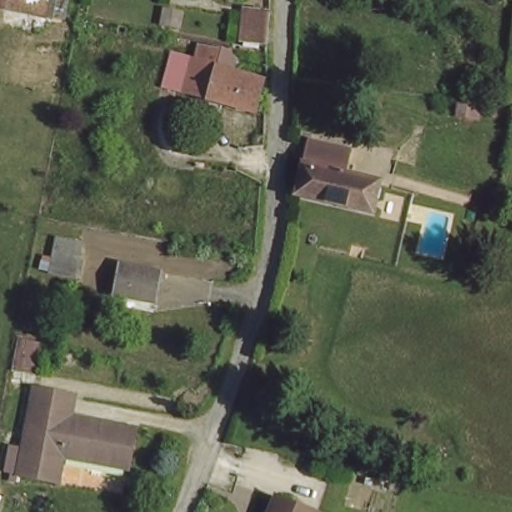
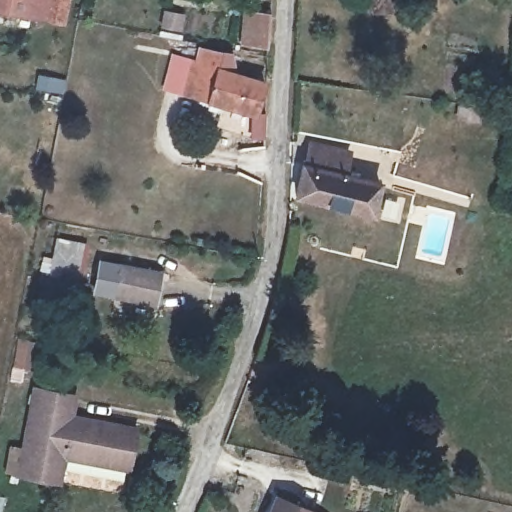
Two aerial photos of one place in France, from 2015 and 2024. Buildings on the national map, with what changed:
unchanged [(0,0),(52,0),(48,20),(0,10),(0,0)]
unchanged [(173,0),(192,0),(190,15),(171,10),(173,0)]
unchanged [(238,28),(243,28),(243,15),(263,15),(263,47),(237,45),(238,28)]
unchanged [(188,62),(193,64),(199,50),(225,58),(221,72),(263,84),(253,115),(180,93),(188,62)]
unchanged [(302,170),(307,147),(345,155),(340,179),(376,187),(373,219),(294,205),(300,170),(302,170)]
unchanged [(51,241),(81,248),(77,269),(47,262),(51,241)]
unchanged [(112,300),(117,271),(155,279),(150,306),(112,300)]
unchanged [(18,476),(20,471),(35,390),(75,398),(72,420),(137,435),(128,479),(63,464),(59,480),(58,485),(18,476)]
unchanged [(265,502),(304,512),(262,512),(265,502)]

